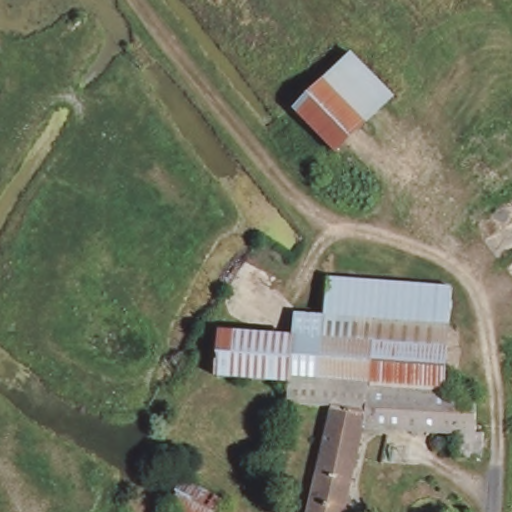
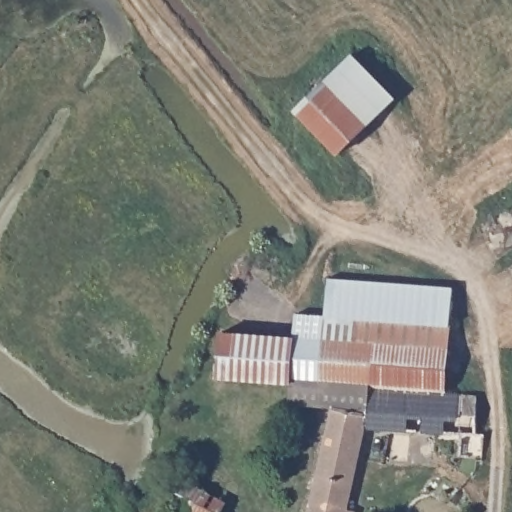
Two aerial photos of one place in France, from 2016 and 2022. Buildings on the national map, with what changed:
unchanged [(340,157),(296,110),(355,52),(400,99),(340,157)]
unchanged [(293,337),(293,312),(327,314),(333,251),(386,253),(383,267),(415,269),(414,283),(458,287),(453,394),(331,383),(220,378),(223,332),(293,337)]
unchanged [(453,394),(473,396),(472,432),(482,433),(479,461),(457,458),(456,438),(369,428),(348,505),(359,510),(359,512),(298,512),(331,383),(453,394)]
unchanged [(230,504),(226,512),(184,512),(198,482),(230,504)]

